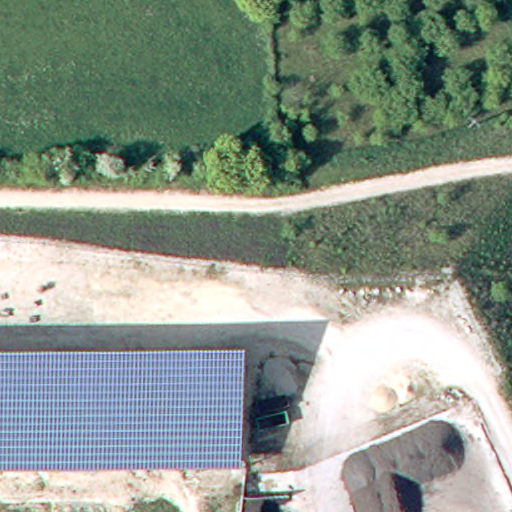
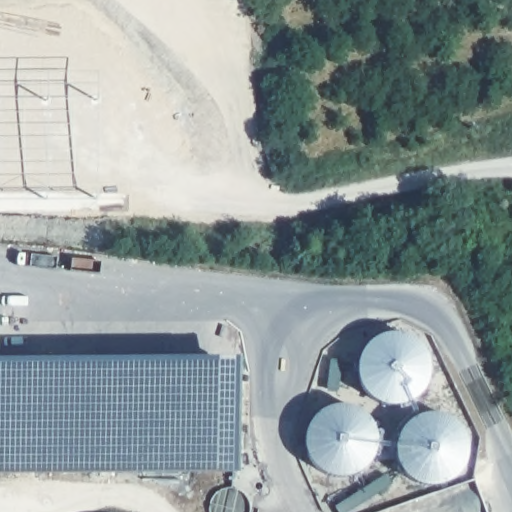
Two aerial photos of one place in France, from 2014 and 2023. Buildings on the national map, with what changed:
new [(430,374),(428,381),(425,387),(420,393),(415,397),(409,401),(402,403),(395,404),(388,403),(381,401),(375,397),(370,393),(365,387),(361,381),(360,374),(358,367),(360,360),(361,353),(365,347),(370,342),(375,337),(381,334),(388,332),(395,331),(402,332),(409,334),(415,337),(420,342),(425,347),(428,353),(430,360),(431,367),(430,374)]
unchanged [(0,359),(237,357),(237,471),(0,472),(0,359)]
new [(309,459),(305,449),(303,437),(305,426),(313,413),(323,406),(335,403),(345,403),(355,406),(365,411),(371,420),(376,432),(377,442),(376,451),(371,462),(365,468),(355,474),(347,477),(336,476),(327,474),(318,469),(309,459)]
new [(400,428),(407,420),(417,414),(428,412),(440,412),(450,417),(458,425),(465,435),(467,448),(466,457),(462,467),(455,476),(446,482),(435,486),(422,485),(412,480),(402,472),(396,461),(394,449),(395,438),(400,428)]

